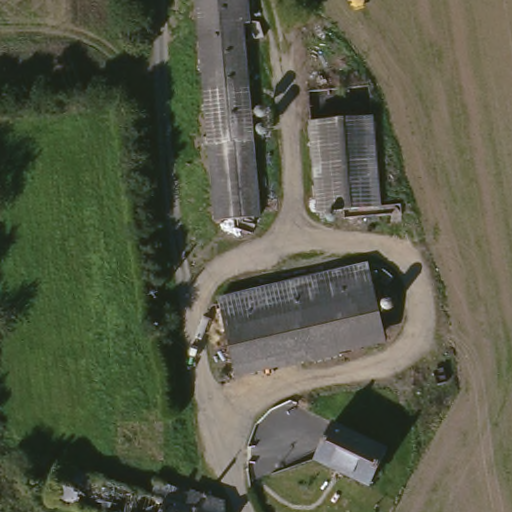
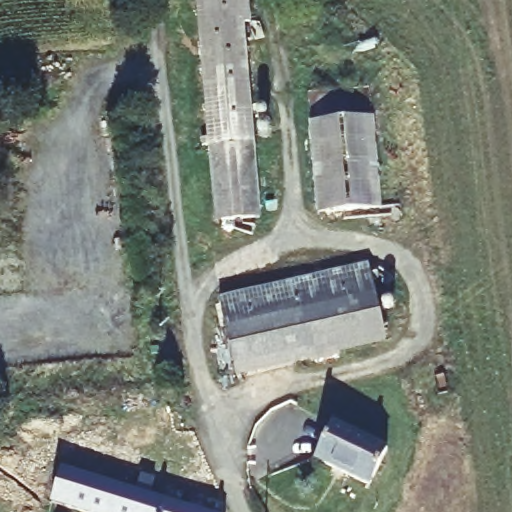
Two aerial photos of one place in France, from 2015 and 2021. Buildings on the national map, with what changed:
unchanged [(249,148),(254,221),(214,221),(211,149),(197,0),(246,0),(247,23),(239,24),(249,148)]
unchanged [(371,121),(380,213),(319,216),(311,124),(371,121)]
unchanged [(368,269),(385,338),(238,371),(221,302),(368,269)]
unchanged [(386,454),(368,490),(317,464),(335,429),(386,454)]
demolished [(186,497),(187,495),(221,505),(218,512),(74,512),(50,504),(60,471),(150,499),(182,509),(186,497)]

